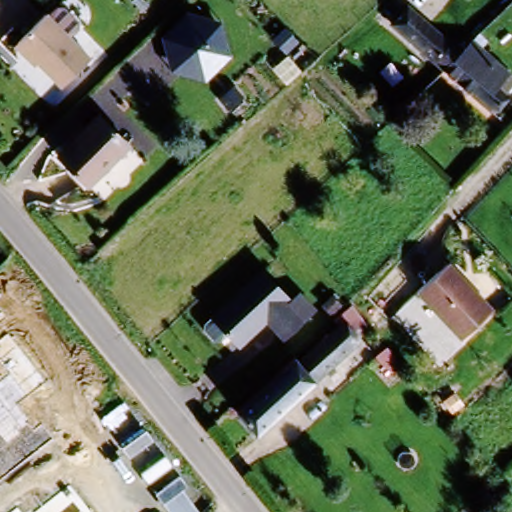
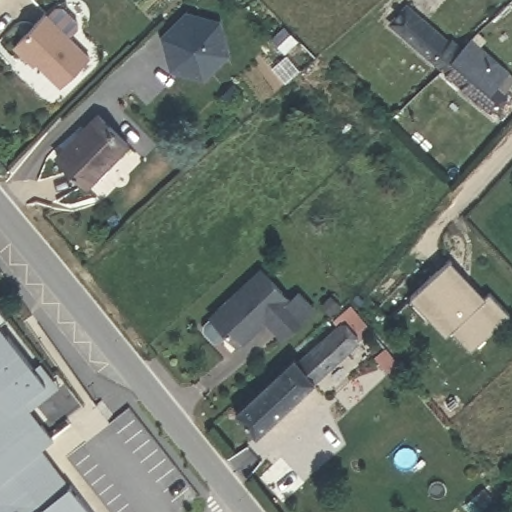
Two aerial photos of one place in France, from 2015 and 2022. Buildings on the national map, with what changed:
unchanged [(437,64),(386,20),(401,4),(441,36),(445,34),(457,44),(437,64)]
unchanged [(160,39),(185,12),(219,20),(229,54),(204,80),(169,72),(160,39)]
unchanged [(38,16),(83,59),(56,88),(12,46),(38,16)]
unchanged [(437,64),(457,44),(467,34),(512,72),(512,85),(489,111),(437,64)]
unchanged [(99,110),(131,139),(101,170),(90,183),(59,154),(99,110)]
unchanged [(450,263),(494,309),(463,339),(419,293),(450,263)]
unchanged [(259,272),(289,303),(296,295),(313,311),(283,341),(264,323),(238,348),(211,319),(259,272)]
new [(0,322),(0,308),(7,316),(0,322)]
unchanged [(359,339),(259,431),(236,409),(294,356),(303,356),(341,319),(359,339)]
new [(42,361),(60,387),(32,409),(56,438),(41,449),(90,512),(0,512),(0,322),(35,367),(42,361)]
unchanged [(379,350),(395,367),(387,375),(370,358),(379,350)]

